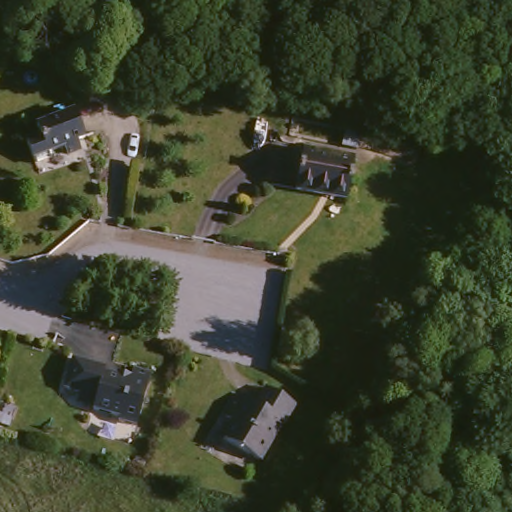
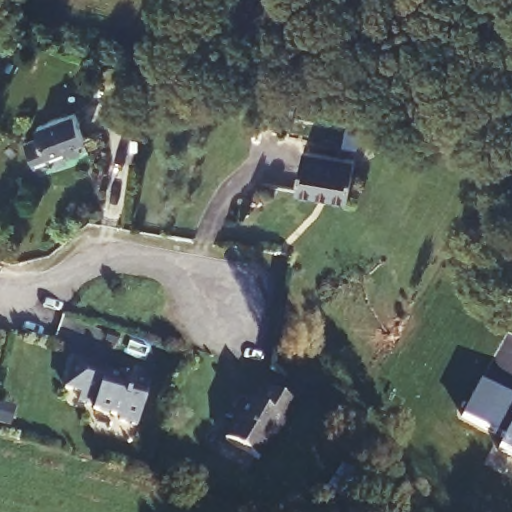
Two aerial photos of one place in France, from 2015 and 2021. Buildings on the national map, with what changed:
unchanged [(38,134),(35,122),(81,108),(91,138),(82,141),(87,155),(71,160),(67,147),(50,153),(50,160),(35,166),(25,137),(30,136),(38,134)]
unchanged [(300,154),(353,165),(344,206),(291,195),(300,154)]
unchanged [(132,432),(110,426),(111,422),(89,415),(90,411),(75,407),(77,399),(62,394),(70,366),(102,375),(101,380),(127,387),(130,375),(148,381),(132,432)]
new [(512,395),(512,401),(509,404),(512,406),(512,453),(487,437),(493,427),(454,402),(474,370),(512,395)]
unchanged [(217,439),(231,418),(222,412),(239,390),(248,396),(257,384),(292,406),(281,421),(279,419),(249,459),(217,439)]
unchanged [(13,407),(9,433),(0,431),(0,405),(13,407)]

